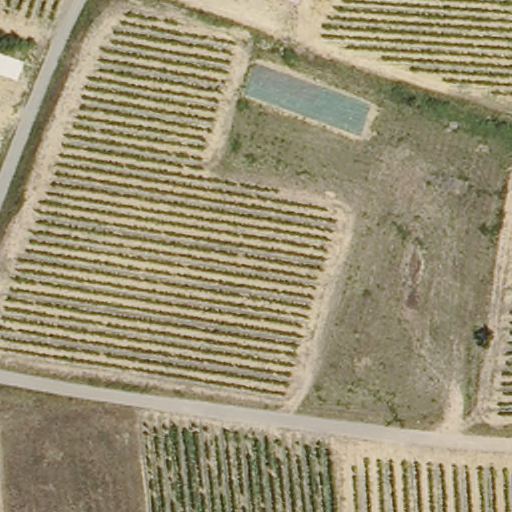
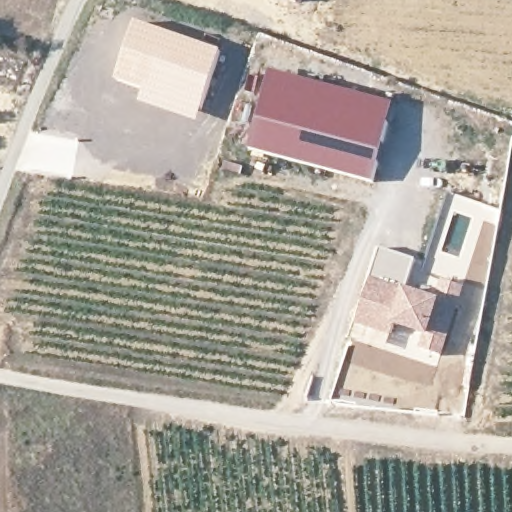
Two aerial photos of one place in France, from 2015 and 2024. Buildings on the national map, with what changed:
unchanged [(287,0),(298,0),(297,3),(287,0)]
new [(137,21),(222,50),(197,122),(139,102),(143,91),(115,80),(137,21)]
new [(249,151),(270,72),(393,104),(371,181),(249,151)]
new [(422,334),(393,325),(389,336),(354,323),(381,249),(416,260),(405,289),(435,299),(441,281),(464,288),(442,355),(420,348),(422,334)]

